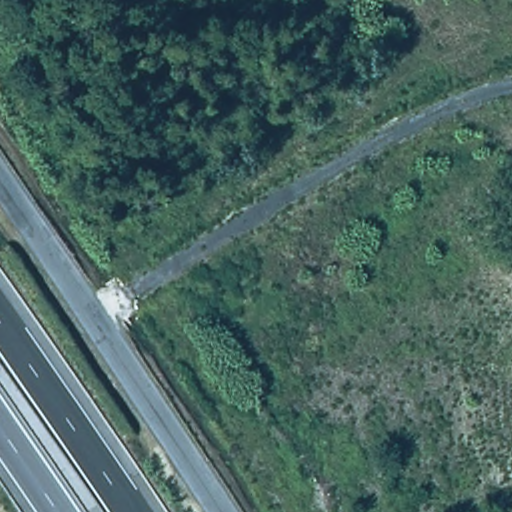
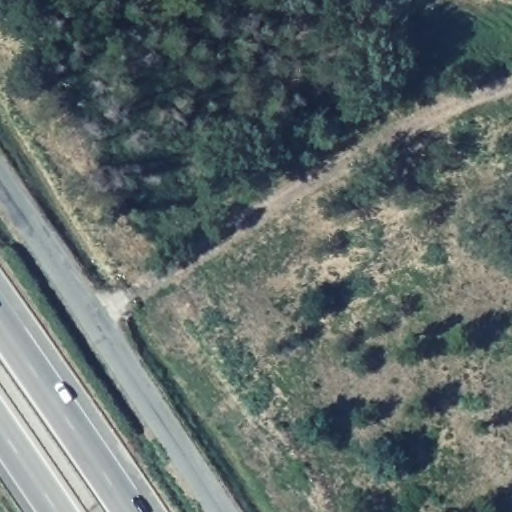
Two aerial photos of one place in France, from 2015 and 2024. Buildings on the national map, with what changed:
[]

